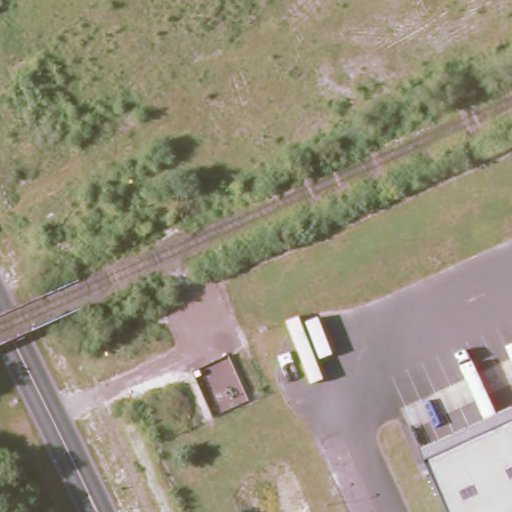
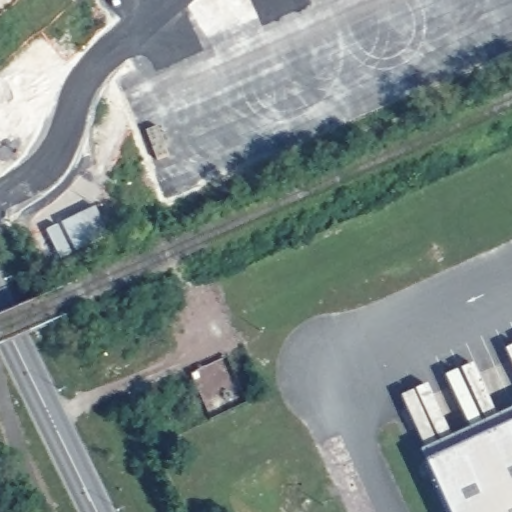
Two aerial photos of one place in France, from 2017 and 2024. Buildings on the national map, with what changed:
unchanged [(512,512),(453,512),(426,448),(512,409),(512,512)]

